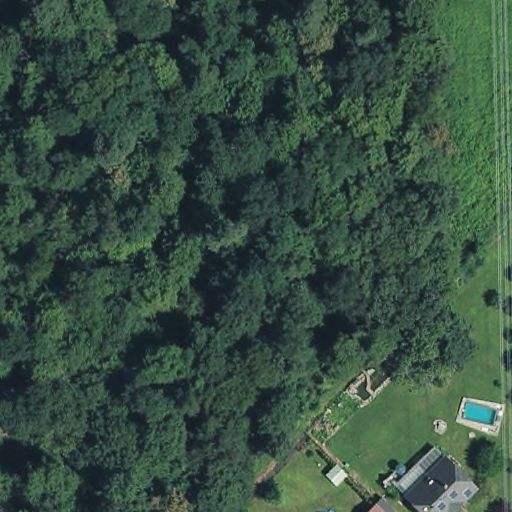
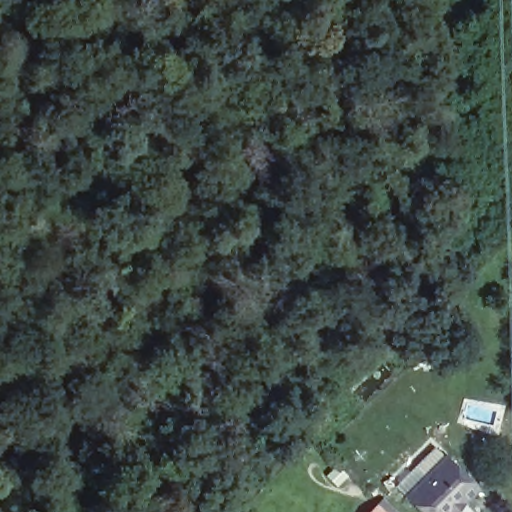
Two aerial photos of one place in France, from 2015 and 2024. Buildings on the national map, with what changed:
unchanged [(456,512),(425,512),(410,497),(400,487),(439,448),(450,459),(477,486),(480,488),(460,507),(456,512)]
unchanged [(386,512),(371,512),(379,504),(386,512)]

